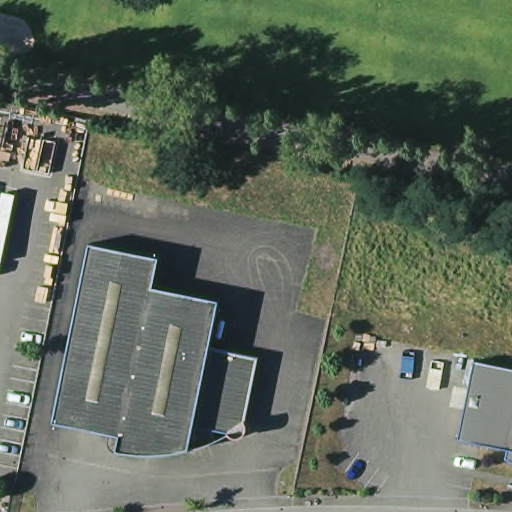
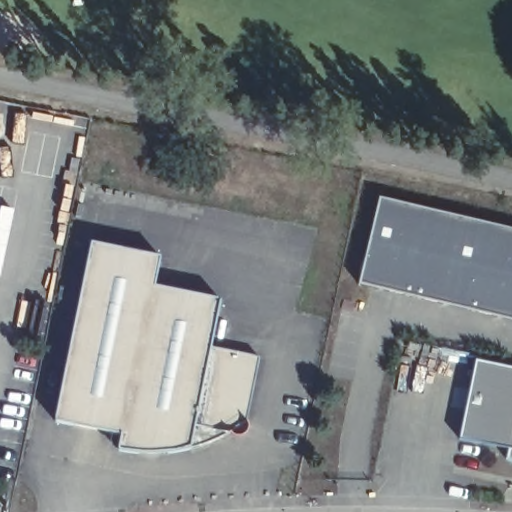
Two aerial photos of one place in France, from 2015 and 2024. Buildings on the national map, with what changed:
new [(512,229),(512,320),(359,283),(380,197),(512,229)]
unchanged [(225,431),(191,423),(185,450),(168,454),(152,455),(137,454),(125,451),(113,448),(116,434),(53,420),(91,241),(164,256),(158,284),(223,299),(213,347),(260,356),(246,419),(225,431)]
unchanged [(510,453),(458,443),(474,361),(512,369),(512,466),(507,464),(510,453)]

